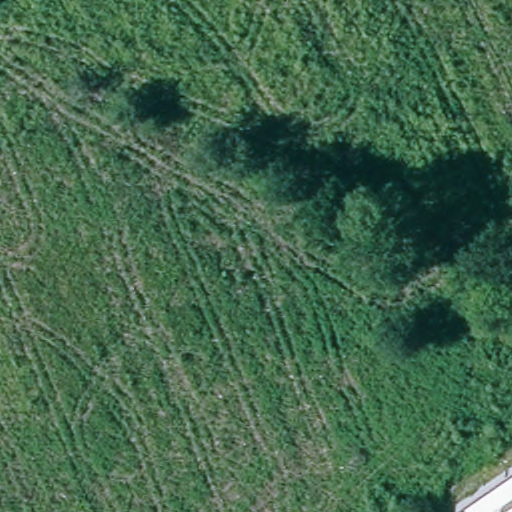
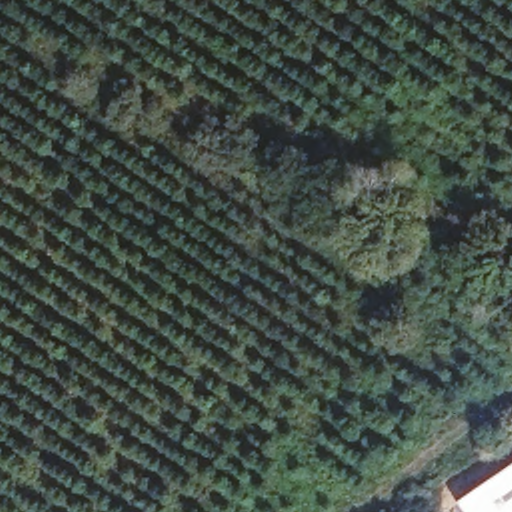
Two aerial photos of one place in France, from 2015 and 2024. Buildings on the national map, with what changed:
unchanged [(512,467),(512,512),(455,512),(452,508),(512,467)]

